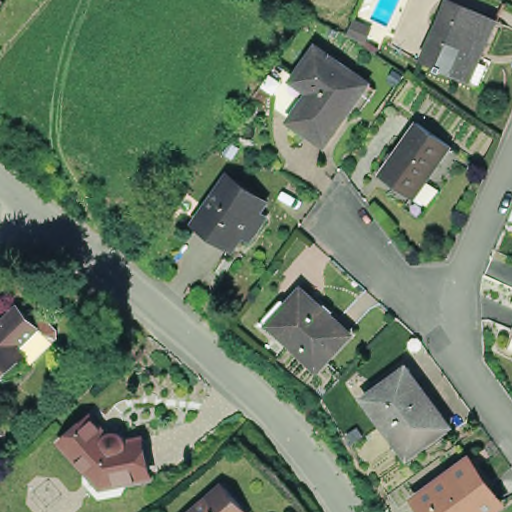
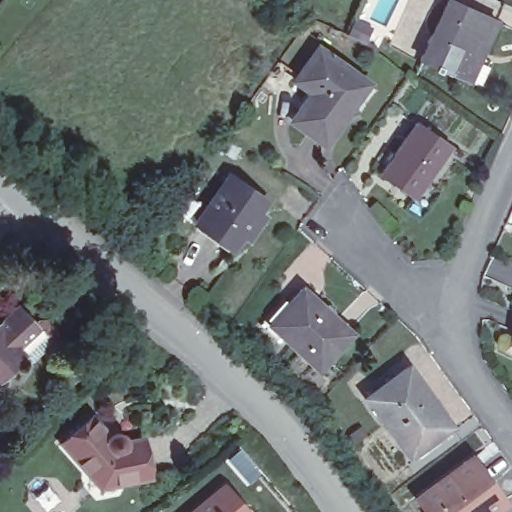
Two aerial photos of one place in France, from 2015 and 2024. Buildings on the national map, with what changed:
unchanged [(469,80),(420,58),(446,0),(495,21),(485,43),(477,62),(469,80)]
unchanged [(356,111),(347,105),(320,141),(288,117),(308,87),(291,74),(314,44),(364,80),(373,86),(356,111)]
unchanged [(412,196),(377,172),(414,120),(448,145),(412,196)]
unchanged [(245,244),(236,237),(232,241),(197,215),(231,169),(266,195),(258,207),(267,215),(245,244)]
unchanged [(301,290),(348,333),(317,370),(268,325),(264,321),(282,302),(286,305),(301,290)]
unchanged [(19,303),(32,314),(39,322),(36,328),(17,345),(23,353),(11,365),(0,375),(0,322),(19,303)]
unchanged [(512,337),(512,342),(510,341),(512,337)]
unchanged [(409,452),(400,439),(367,393),(410,362),(441,406),(450,421),(409,452)]
unchanged [(117,439),(127,437),(90,468),(71,445),(68,444),(71,438),(92,422),(102,419),(117,439)]
unchanged [(145,441),(153,480),(106,489),(92,471),(130,437),(135,444),(145,441)]
unchanged [(418,493),(470,455),(504,499),(486,512),(432,512),(418,493)]
unchanged [(218,484),(237,508),(233,512),(184,512),(218,484)]

